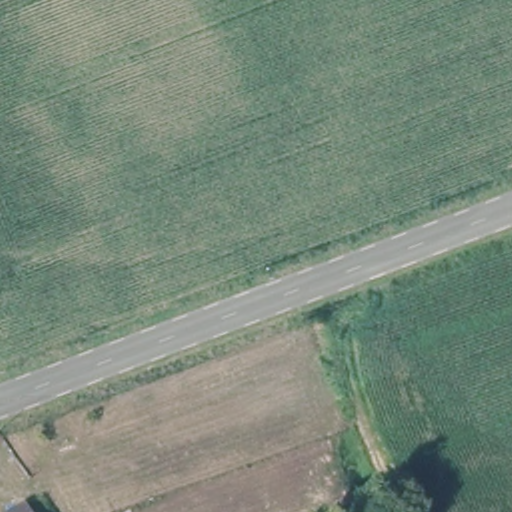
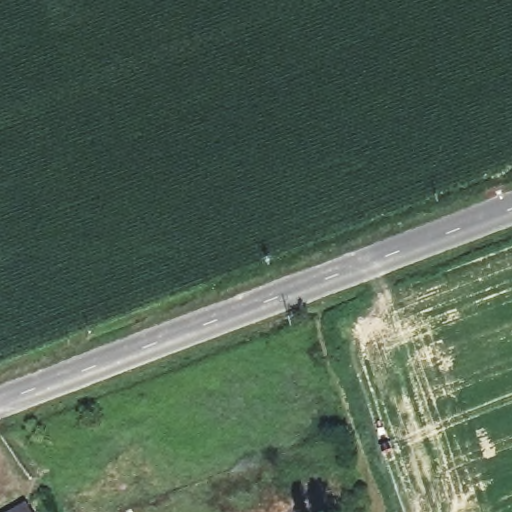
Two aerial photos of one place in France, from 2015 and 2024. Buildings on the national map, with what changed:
unchanged [(33,512),(2,512),(23,497),(33,512)]

